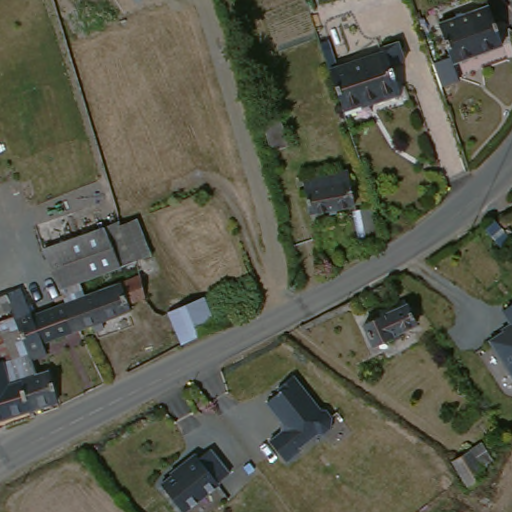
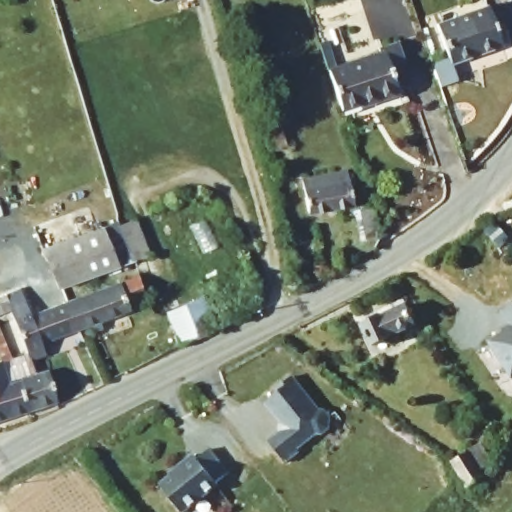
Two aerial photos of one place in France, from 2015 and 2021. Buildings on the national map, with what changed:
unchanged [(451,49),(442,23),(491,5),(504,44),(458,60),(461,74),(443,80),(435,55),(451,49)]
unchanged [(338,99),(328,69),(383,52),(382,48),(398,43),(404,64),(389,68),(397,91),(341,109),(338,99)]
unchanged [(269,89),(276,113),(262,117),(256,92),(269,89)]
unchanged [(277,120),(285,147),(268,151),(260,125),(277,120)]
unchanged [(340,172),(347,206),(303,215),(296,181),(340,172)]
unchanged [(363,209),(369,239),(355,242),(349,213),(363,209)]
unchanged [(113,269),(98,229),(133,214),(149,252),(131,260),(129,263),(133,276),(64,303),(59,289),(113,269)]
unchanged [(508,238),(500,244),(485,226),(492,219),(508,238)]
unchanged [(98,229),(113,269),(59,289),(55,291),(40,251),(98,229)]
unchanged [(64,303),(133,276),(129,263),(131,260),(146,259),(151,278),(138,283),(141,297),(126,304),(127,310),(99,320),(101,329),(93,332),(91,324),(77,329),(71,332),(61,304),(64,303)]
unchanged [(220,327),(181,346),(167,313),(201,298),(211,319),(216,319),(220,327)]
unchanged [(5,312),(0,313),(0,299),(5,312)]
unchanged [(12,319),(11,310),(21,307),(25,318),(61,304),(71,332),(35,345),(39,356),(27,360),(24,357),(7,319),(12,319)]
unchanged [(393,310),(405,305),(415,324),(398,333),(399,337),(391,340),(389,338),(372,346),(362,326),(380,317),(377,310),(389,304),(393,310)]
unchanged [(512,307),(512,315),(508,309),(512,307)]
unchanged [(512,328),(512,366),(495,339),(512,328)]
unchanged [(24,357),(27,360),(33,374),(43,372),(54,402),(25,412),(16,383),(7,384),(0,364),(24,357)]
unchanged [(0,364),(7,384),(16,383),(25,412),(0,421),(0,365),(0,364)]
unchanged [(297,377),(323,412),(329,413),(334,419),(333,429),(326,436),(320,434),(300,450),(302,453),(289,464),(272,442),(285,432),(286,425),(269,403),(283,393),(282,389),(297,377)]
unchanged [(479,444),(488,459),(480,470),(482,474),(484,478),(477,482),(466,487),(450,461),(468,451),(479,444)]
unchanged [(198,459),(211,449),(230,473),(216,483),(218,486),(183,512),(180,512),(159,484),(181,468),(180,466),(195,454),(198,459)]

